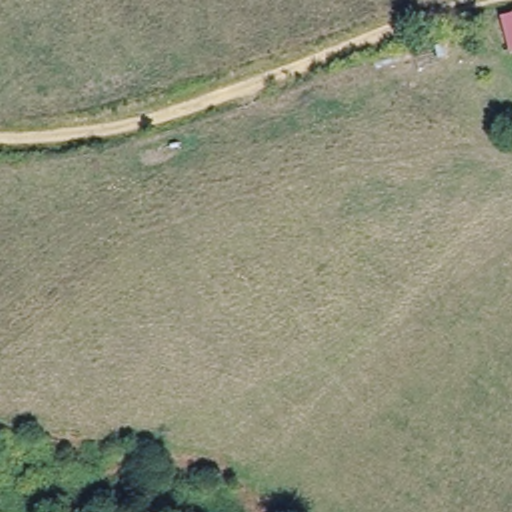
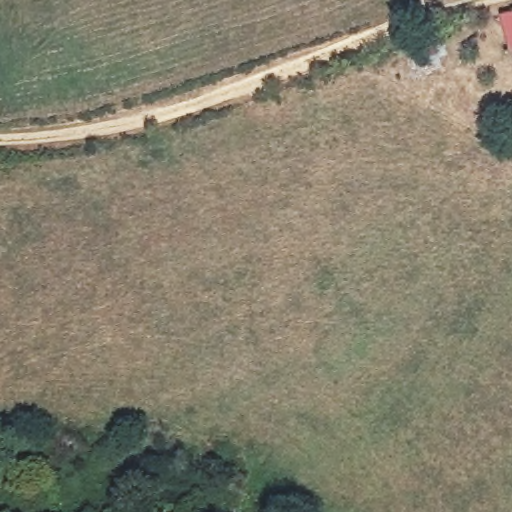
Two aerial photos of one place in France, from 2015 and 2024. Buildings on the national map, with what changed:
unchanged [(490,11),(512,8),(512,51),(499,55),(490,11)]

